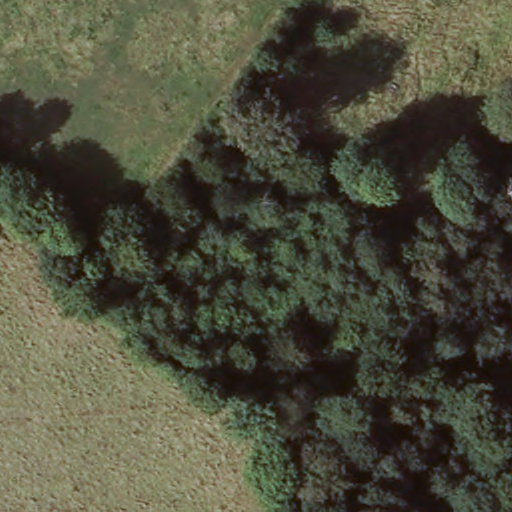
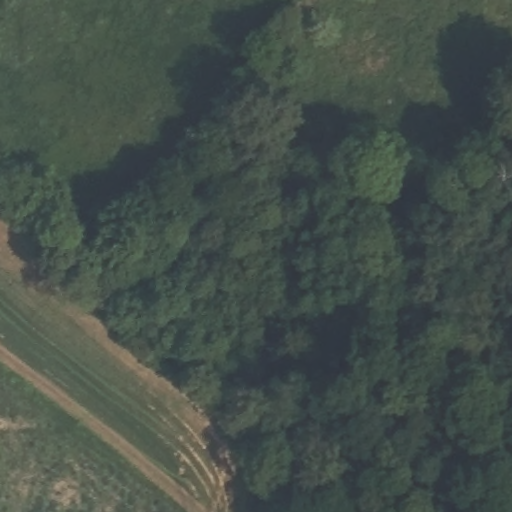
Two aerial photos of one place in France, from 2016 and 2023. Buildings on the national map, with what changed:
unchanged [(354,205),(366,218),(348,239),(336,225),(354,205)]

